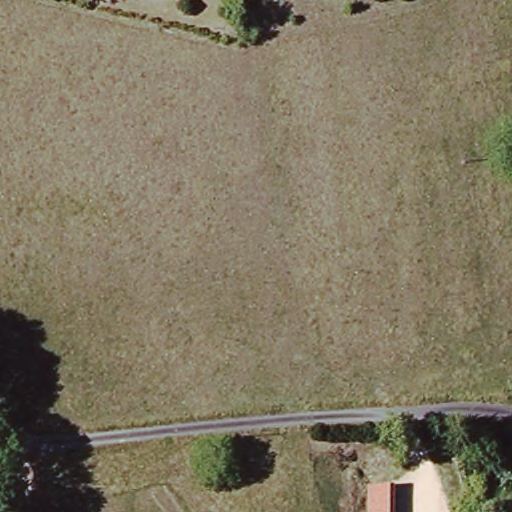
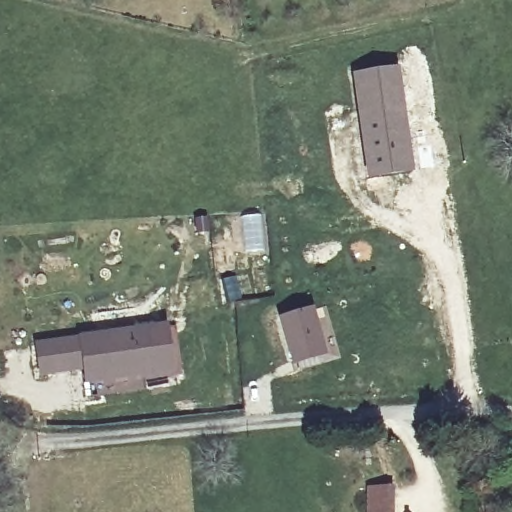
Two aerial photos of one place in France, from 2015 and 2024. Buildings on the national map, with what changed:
new [(415,172),(369,179),(353,75),(400,66),(415,172)]
new [(328,355),(293,366),(279,317),(314,307),(328,355)]
new [(79,336),(168,324),(175,371),(85,384),(84,370),(40,377),(34,342),(79,336)]
new [(403,502),(400,512),(369,512),(368,487),(395,486),(403,502)]

